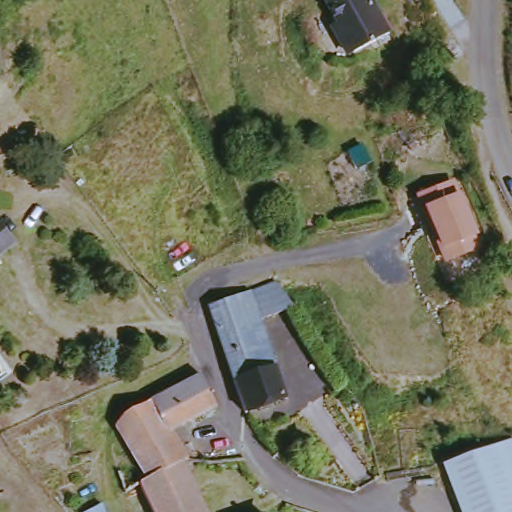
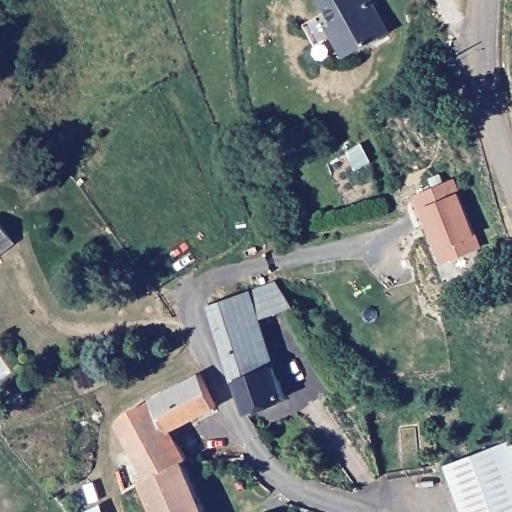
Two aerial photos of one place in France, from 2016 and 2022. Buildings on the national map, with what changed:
unchanged [(359,58),(346,56),(335,37),(336,25),(324,0),(370,0),(391,37),(359,58)]
unchanged [(482,252),(447,266),(417,196),(455,182),(482,252)]
unchanged [(0,254),(0,217),(18,243),(2,256),(0,254)]
unchanged [(277,283),(296,309),(265,320),(291,397),(252,411),(215,305),(256,291),(277,283)]
unchanged [(221,408),(175,433),(193,462),(189,464),(156,481),(123,427),(133,413),(206,375),(221,408)]
unchanged [(512,441),(512,512),(469,512),(449,463),(478,454),(512,441)]
unchanged [(156,481),(189,464),(210,512),(160,512),(148,485),(156,481)]
unchanged [(110,512),(95,512),(108,503),(110,512)]

